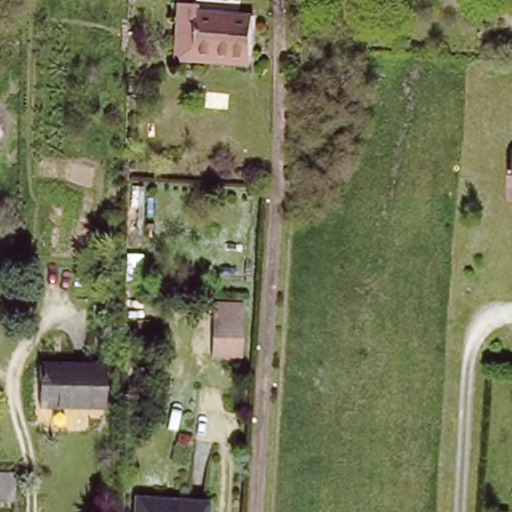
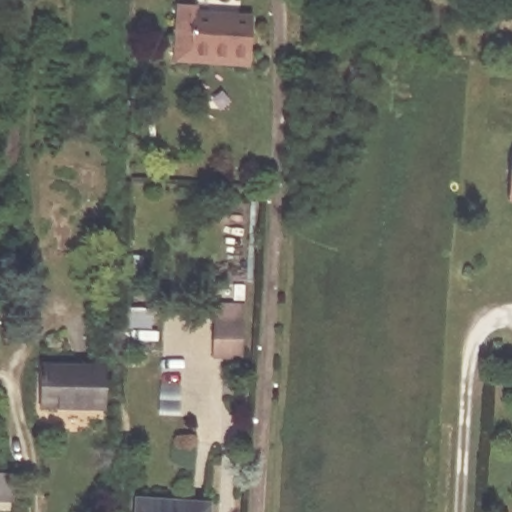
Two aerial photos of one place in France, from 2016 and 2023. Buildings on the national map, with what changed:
unchanged [(180,50),(181,0),(196,0),(196,8),(241,10),(258,10),(255,62),(241,61),(180,59),(180,50)]
unchanged [(213,358),(214,300),(243,302),(241,359),(213,358)]
unchanged [(39,386),(38,362),(105,360),(108,414),(50,416),(40,416),(39,386)]
unchanged [(13,470),(14,498),(0,498),(0,469),(13,470)]
unchanged [(210,497),(209,512),(138,512),(138,495),(210,497)]

